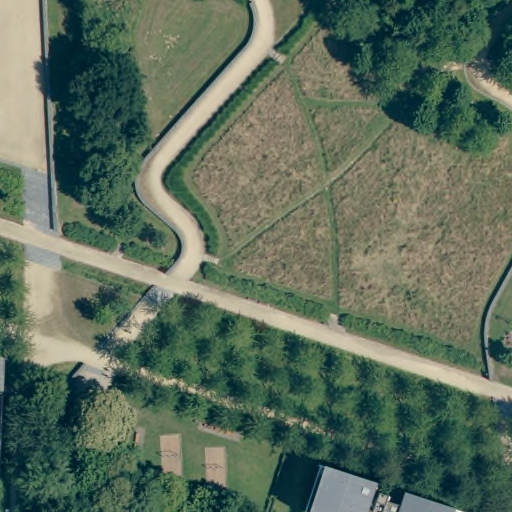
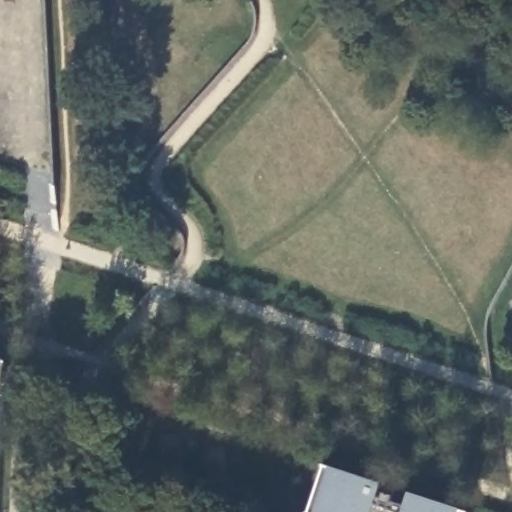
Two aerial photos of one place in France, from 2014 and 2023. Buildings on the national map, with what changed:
unchanged [(409,510),(413,497),(458,512),(312,512),(326,470),(325,470),(325,468),(383,487),(378,500),(385,502),(386,497),(396,500),(394,505),(409,510)]

